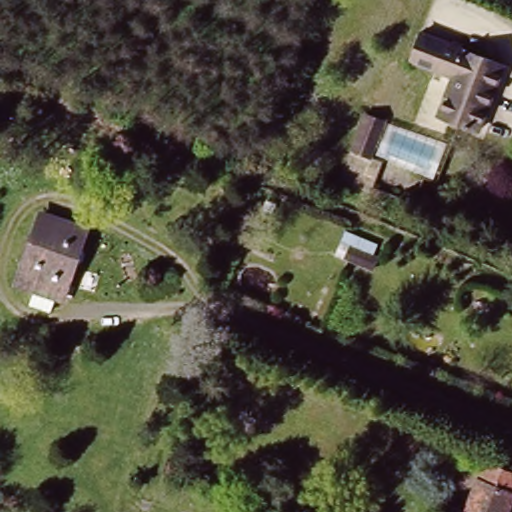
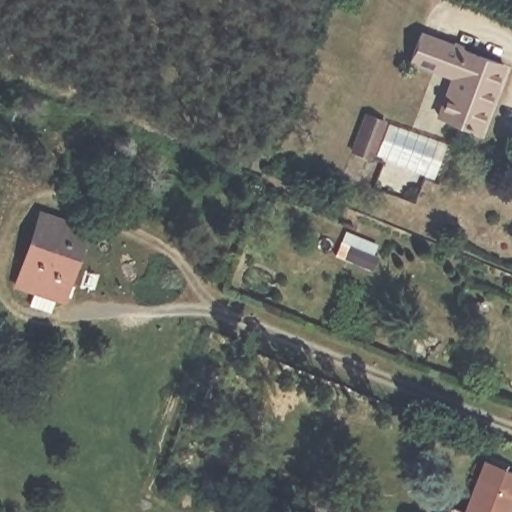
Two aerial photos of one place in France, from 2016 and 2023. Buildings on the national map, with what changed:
unchanged [(475,138),(434,123),(447,85),(407,68),(419,36),(502,69),(475,138)]
unchanged [(332,101),(320,137),(305,133),(318,95),(332,101)]
unchanged [(76,239),(52,304),(12,293),(38,225),(76,239)]
unchanged [(511,512),(457,512),(478,455),(512,468),(512,510),(511,512)]

